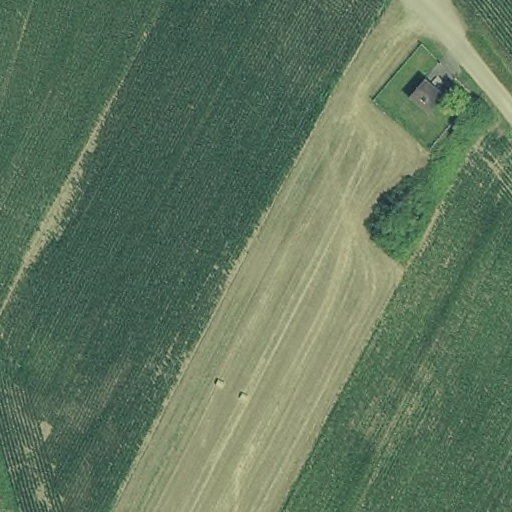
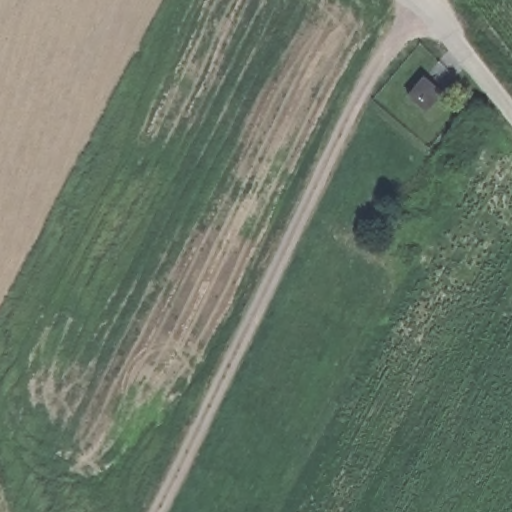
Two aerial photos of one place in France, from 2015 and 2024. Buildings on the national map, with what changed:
unchanged [(423,75),(441,93),(424,109),(407,93),(423,75)]

